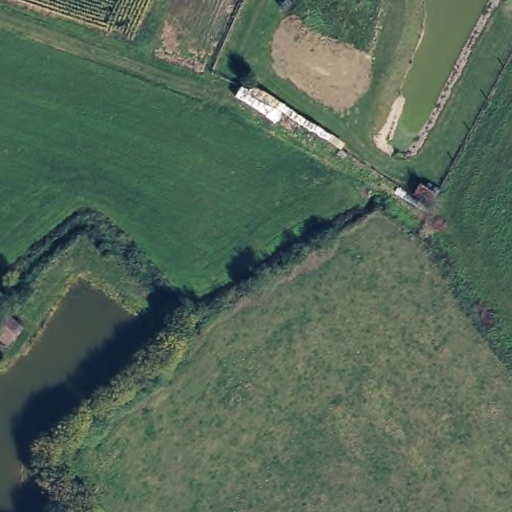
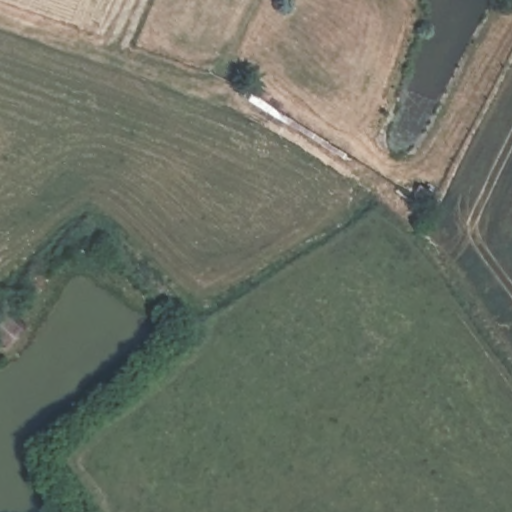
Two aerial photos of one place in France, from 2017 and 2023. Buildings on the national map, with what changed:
unchanged [(0,343),(0,320),(18,300),(32,315),(20,328),(27,333),(5,349),(0,343)]

